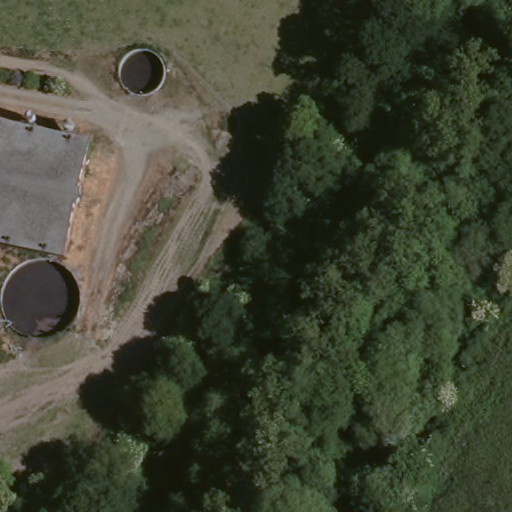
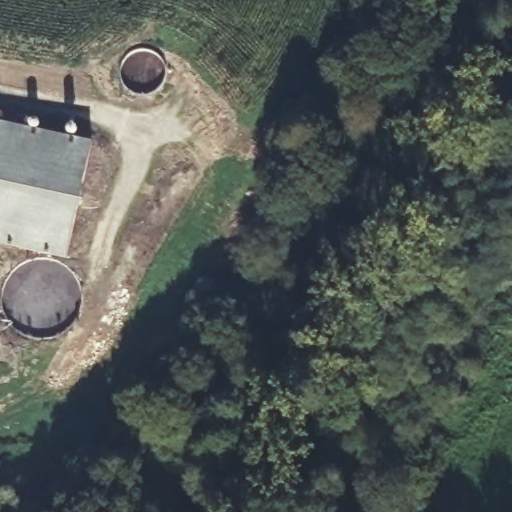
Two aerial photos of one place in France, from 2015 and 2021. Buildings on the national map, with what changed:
unchanged [(67,262),(0,247),(0,126),(95,147),(67,262)]

